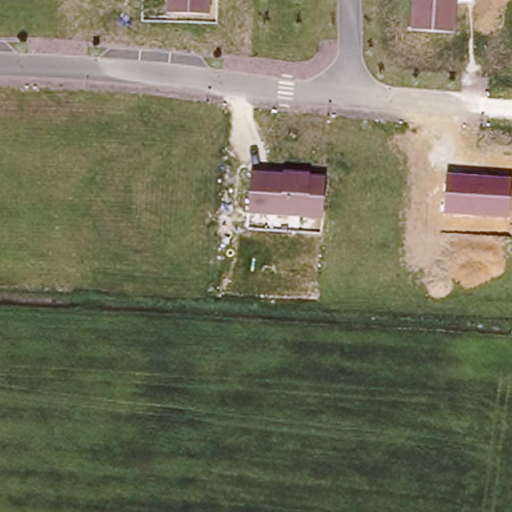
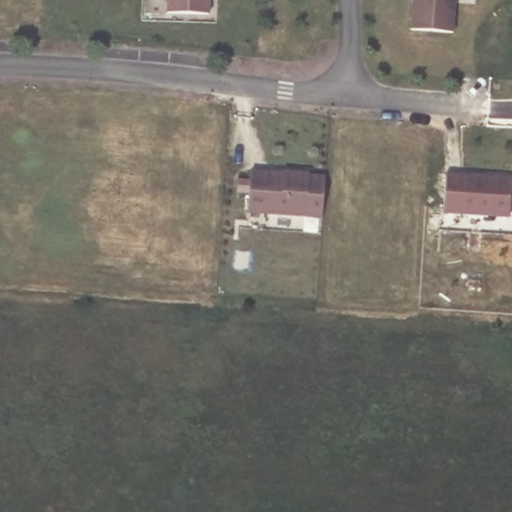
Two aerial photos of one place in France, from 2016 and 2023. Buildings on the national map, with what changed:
unchanged [(209,0),(209,13),(167,10),(167,0),(209,0)]
unchanged [(410,27),(412,0),(457,0),(455,32),(410,27)]
unchanged [(323,177),(322,217),(247,213),(249,172),(323,177)]
unchanged [(512,191),(510,217),(444,212),(447,173),(512,177),(512,191)]

